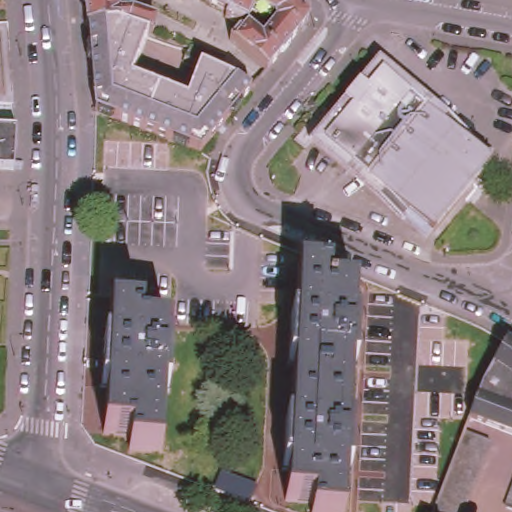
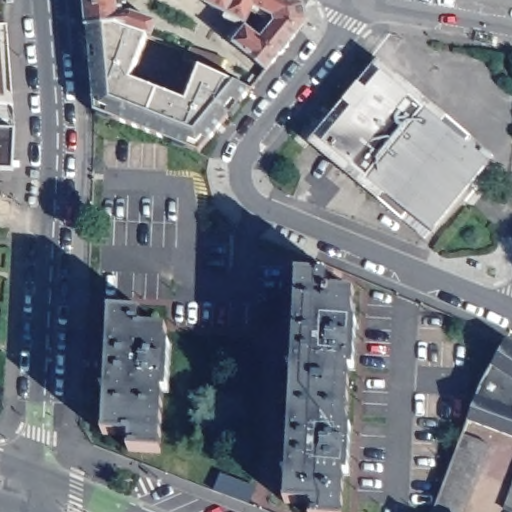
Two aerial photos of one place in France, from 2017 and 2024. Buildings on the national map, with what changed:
unchanged [(122,10),(130,9),(152,16),(154,19),(150,30),(146,30),(116,19),(85,21),(83,0),(125,0),(121,0),(122,10)]
unchanged [(305,18),(264,66),(227,35),(236,25),(246,25),(260,36),(275,20),(273,12),(253,2),(245,19),(235,20),(224,14),(226,9),(215,4),(208,0),(301,0),(302,0),(305,18)]
unchanged [(85,21),(116,19),(146,30),(130,75),(164,87),(153,113),(162,117),(155,131),(102,109),(92,105),(91,95),(85,21)]
unchanged [(307,141),(375,60),(469,137),(467,140),(491,160),(428,236),(404,216),(401,220),(307,141)]
unchanged [(186,95),(199,61),(215,69),(249,85),(195,148),(155,131),(162,117),(153,113),(164,87),(186,95)]
unchanged [(289,426),(292,366),(288,366),(288,365),(284,365),(285,351),(289,351),(290,320),(295,321),(297,275),(325,276),(325,291),(352,292),(350,323),(355,323),(352,369),(348,368),(345,428),(349,428),(347,473),(342,473),(340,512),(312,512),(312,503),(285,501),(287,471),(282,470),(284,440),(280,440),(280,426),(285,426),(289,426)]
unchanged [(164,330),(163,345),(168,345),(166,391),(160,390),(157,452),(129,450),(130,436),(104,435),(106,388),(101,387),(102,376),(85,376),(85,357),(102,357),(103,342),(108,343),(110,312),(110,302),(138,304),(137,312),(137,328),(164,330)]
unchanged [(480,385),(504,341),(512,347),(512,437),(467,420),(480,385)]
unchanged [(461,512),(433,512),(461,434),(487,443),(461,512)]
unchanged [(512,474),(512,512),(510,512),(499,508),(512,474)]

